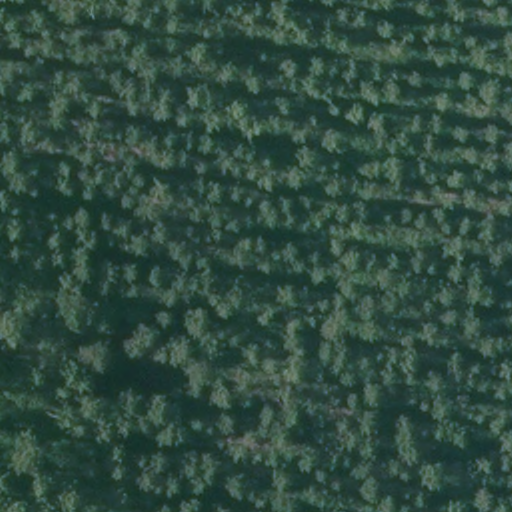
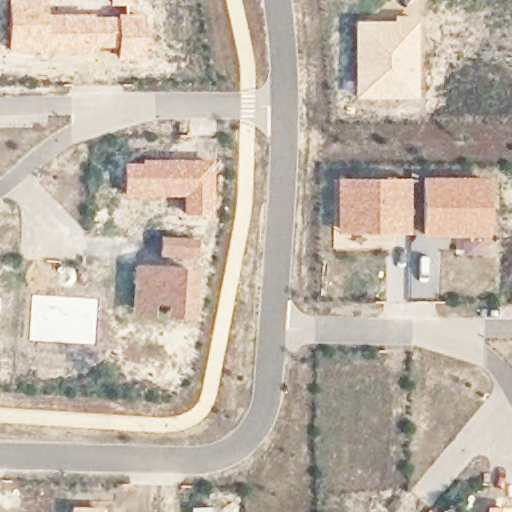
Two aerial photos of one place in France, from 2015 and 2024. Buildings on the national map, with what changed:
new [(91,14),(91,15),(140,16),(141,60),(115,60),(115,48),(91,48),(91,52),(6,52),(6,0),(43,0),(43,14),(91,14)]
new [(353,100),(353,21),(392,21),(392,16),(416,16),(416,99),(353,100)]
new [(211,216),(180,215),(180,196),(122,197),(122,163),(139,164),(140,159),(212,160),(211,216)]
new [(488,179),(488,238),(422,238),(422,179),(488,179)]
new [(409,236),(337,235),(337,180),(409,180),(409,236)]
new [(193,321),(163,319),(164,308),(153,308),(152,318),(131,317),(134,266),(196,270),(193,321)]
new [(93,345),(28,341),(31,294),(96,298),(93,345)]
new [(103,512),(69,512),(69,507),(103,507),(103,512)]
new [(511,512),(486,512),(486,507),(511,508),(511,512)]

